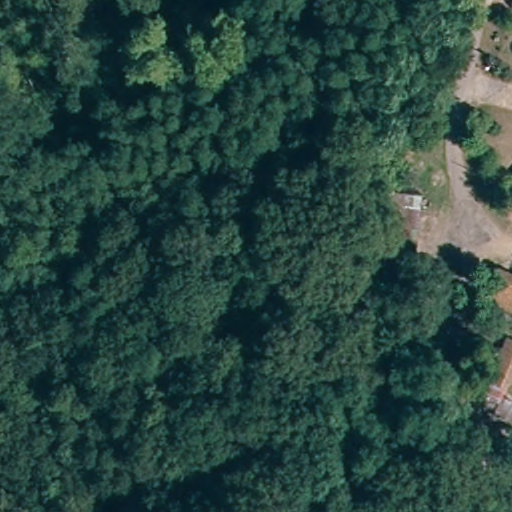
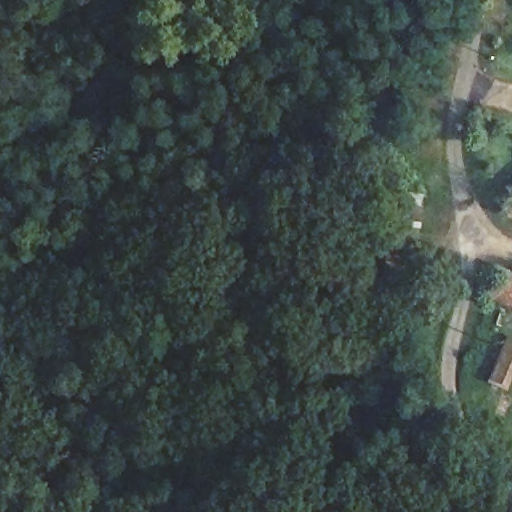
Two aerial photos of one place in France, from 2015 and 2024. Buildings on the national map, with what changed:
unchanged [(503,212),(512,189),(512,216),(503,212)]
unchanged [(384,265),(386,248),(390,200),(418,205),(414,250),(405,250),(403,266),(384,265)]
unchanged [(483,297),(498,265),(512,271),(512,310),(483,297)]
unchanged [(501,397),(482,388),(502,343),(512,347),(512,349),(511,352),(512,353),(512,373),(501,397)]

